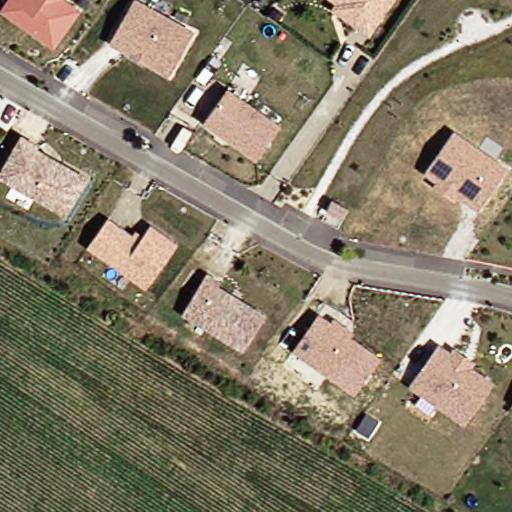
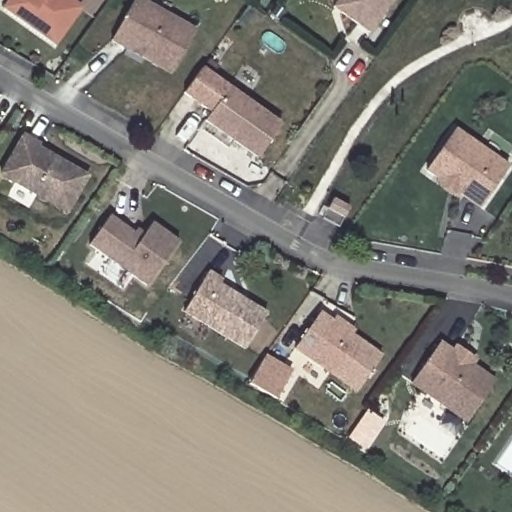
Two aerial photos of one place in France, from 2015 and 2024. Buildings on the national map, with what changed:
unchanged [(79,12),(54,47),(4,12),(13,0),(63,0),(62,1),(79,12)]
unchanged [(144,0),(196,31),(172,72),(113,39),(136,0),(144,0)]
unchanged [(394,0),(372,31),(342,11),(335,5),(339,0),(394,0)]
unchanged [(282,124),(259,157),(207,120),(230,87),(282,124)]
unchanged [(438,184),(441,179),(428,170),(457,129),(510,166),(481,207),(458,191),(455,196),(438,184)]
unchanged [(1,174),(24,135),(39,144),(37,147),(87,176),(66,212),(37,194),(29,207),(7,195),(15,182),(1,174)]
unchanged [(334,197),(351,207),(340,226),(324,217),(334,197)]
unchanged [(92,250),(111,220),(136,237),(141,229),(148,234),(153,226),(181,244),(151,288),(92,250)]
unchanged [(203,273),(217,281),(214,286),(263,312),(243,348),(181,313),(203,273)]
unchanged [(333,322),(336,317),(355,330),(352,335),(382,357),(358,391),(296,348),(320,313),(333,322)]
unchanged [(454,352),(457,347),(476,360),(472,365),(496,382),(468,422),(413,382),(441,342),(454,352)]
new [(270,357),(294,371),(279,397),(253,382),(270,357)]

